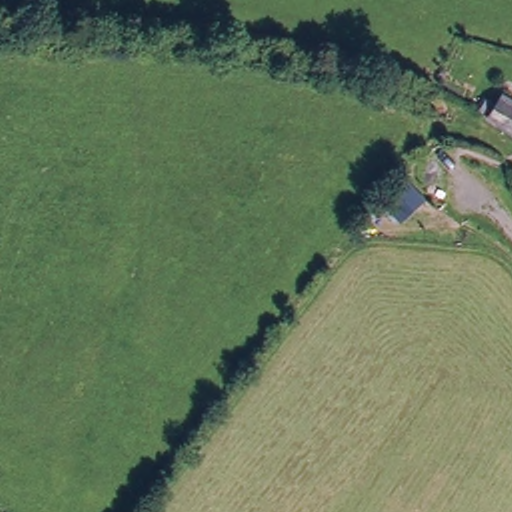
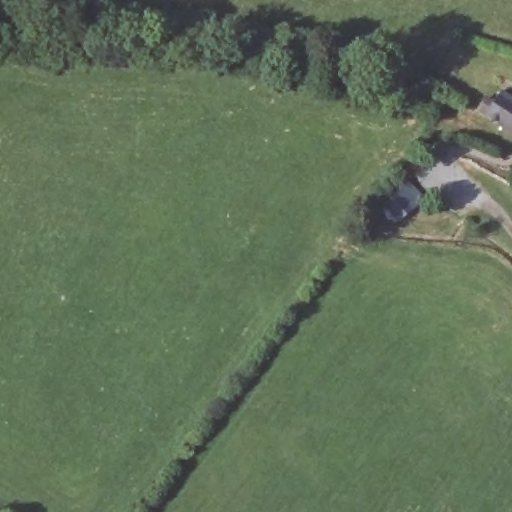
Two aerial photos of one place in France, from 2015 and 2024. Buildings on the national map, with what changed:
unchanged [(509,94),(512,95),(512,123),(495,112),(509,94)]
unchanged [(427,200),(400,225),(381,206),(408,181),(427,200)]

